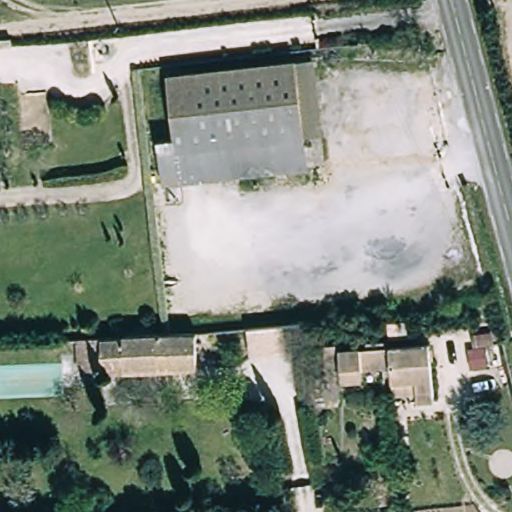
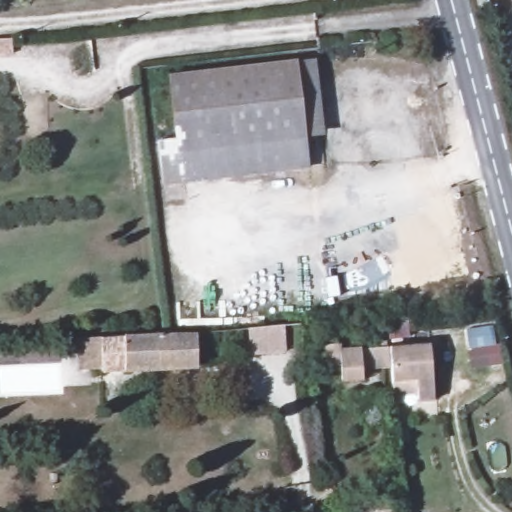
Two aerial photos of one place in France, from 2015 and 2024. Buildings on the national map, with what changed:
unchanged [(182,72),(307,61),(316,167),(170,182),(166,139),(188,137),(182,72)]
unchanged [(255,325),(290,322),(291,347),(256,350),(255,325)]
unchanged [(196,367),(106,372),(106,356),(93,357),(92,341),(169,336),(196,333),(196,367)]
unchanged [(436,347),(440,402),(419,403),(418,390),(405,390),(405,388),(404,370),(403,358),(402,349),(436,347)]
unchanged [(402,349),(403,358),(404,370),(359,373),(359,386),(337,386),(337,353),(402,349)]

